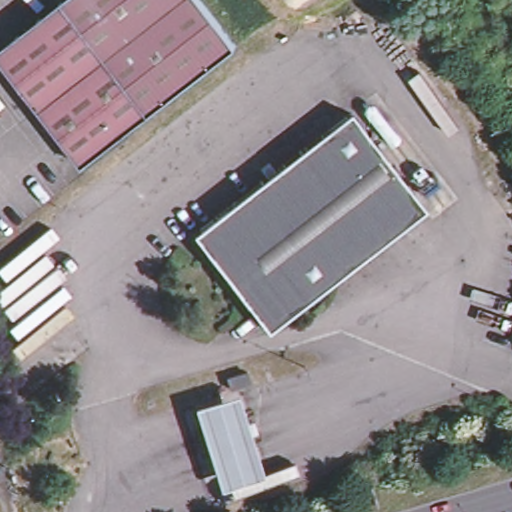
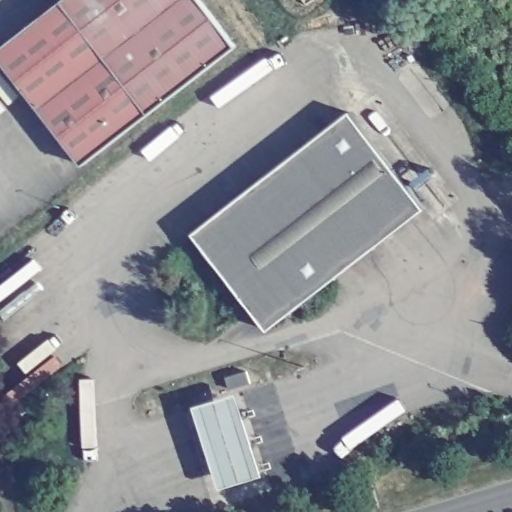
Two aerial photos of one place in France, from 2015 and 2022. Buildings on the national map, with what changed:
unchanged [(200,0),(238,50),(84,169),(0,60),(0,51),(68,0),(200,0)]
unchanged [(418,204),(261,327),(193,239),(350,117),(418,204)]
unchanged [(219,372),(239,366),(242,379),(222,385),(219,372)]
unchanged [(235,412),(250,467),(222,474),(206,419),(235,412)]

